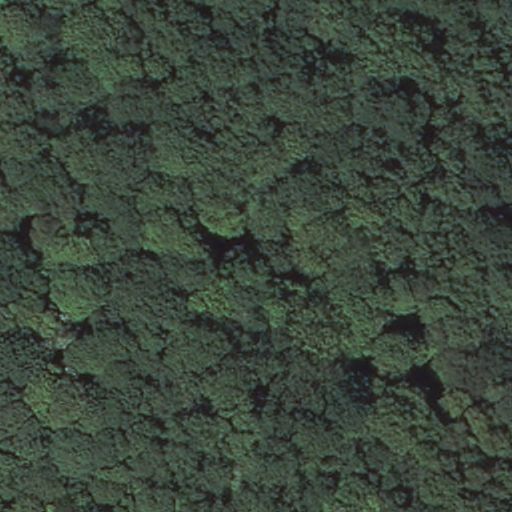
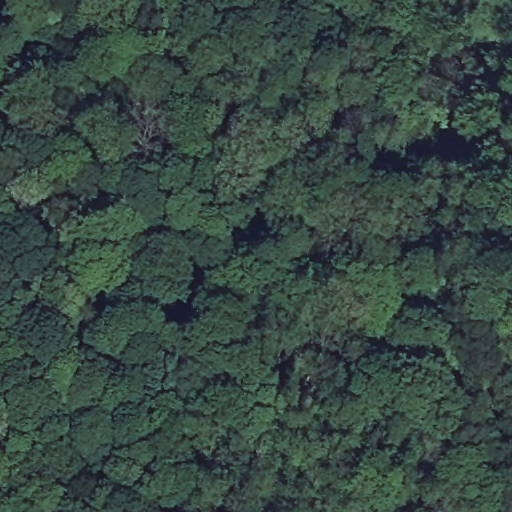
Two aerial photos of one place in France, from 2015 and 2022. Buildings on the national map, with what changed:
[]

